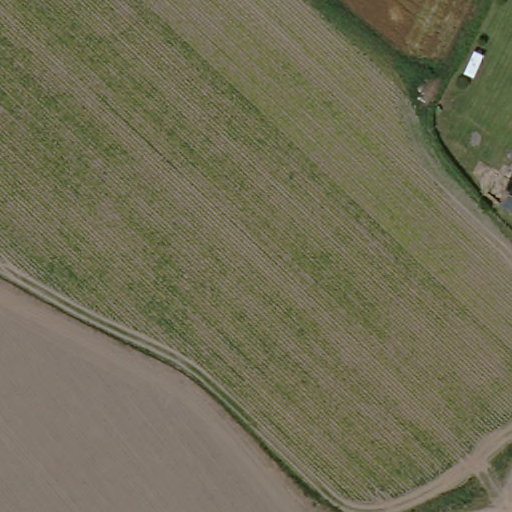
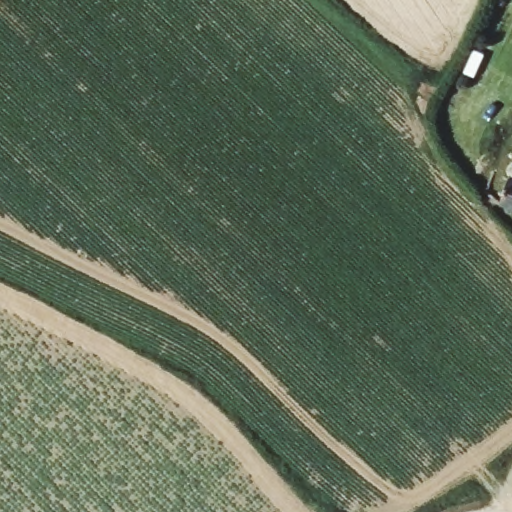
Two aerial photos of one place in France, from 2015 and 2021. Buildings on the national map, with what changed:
unchanged [(505,207),(492,200),(501,180),(512,184),(512,210),(505,207)]

